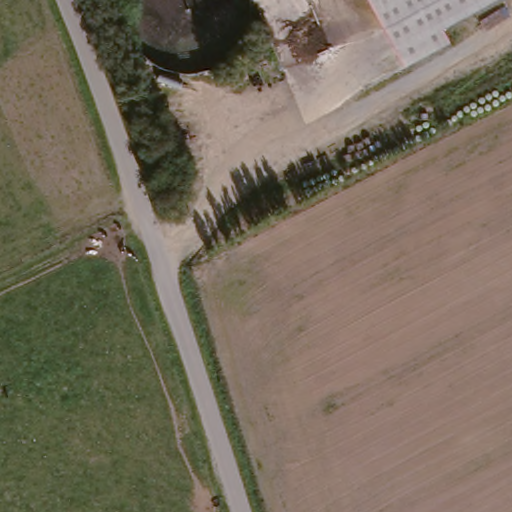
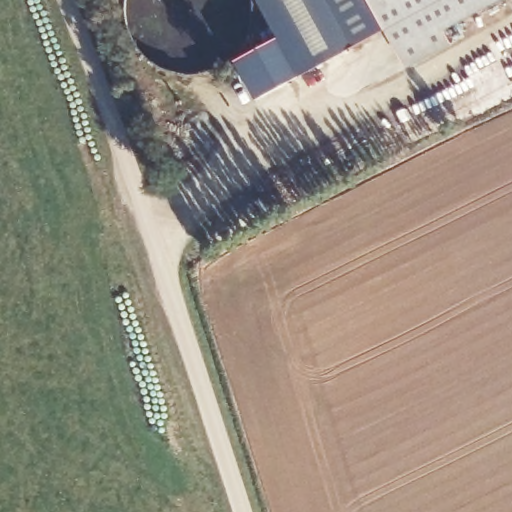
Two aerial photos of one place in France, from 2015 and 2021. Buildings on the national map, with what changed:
new [(299,77),(298,75),(255,100),(234,60),(277,36),(258,0),(373,0),(389,28),(299,77)]
unchanged [(458,41),(409,66),(373,0),(499,0),(450,26),(458,41)]

